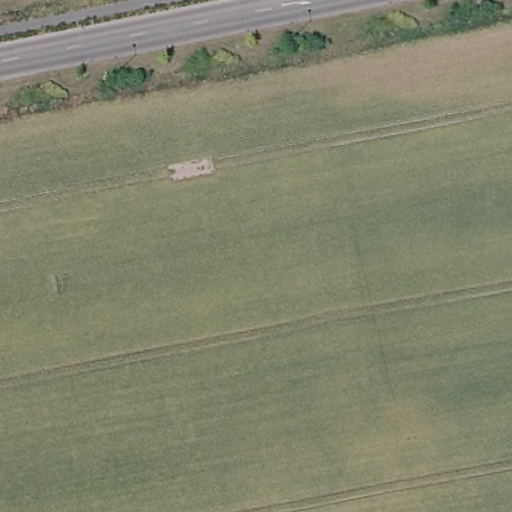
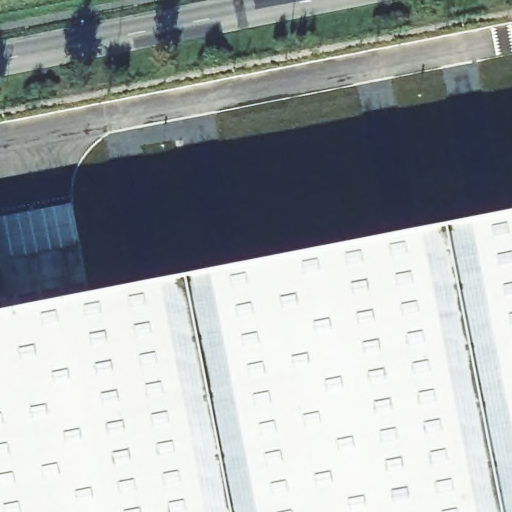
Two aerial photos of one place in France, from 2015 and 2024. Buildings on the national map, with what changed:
new [(512,217),(512,512),(0,512),(0,316),(512,217)]

